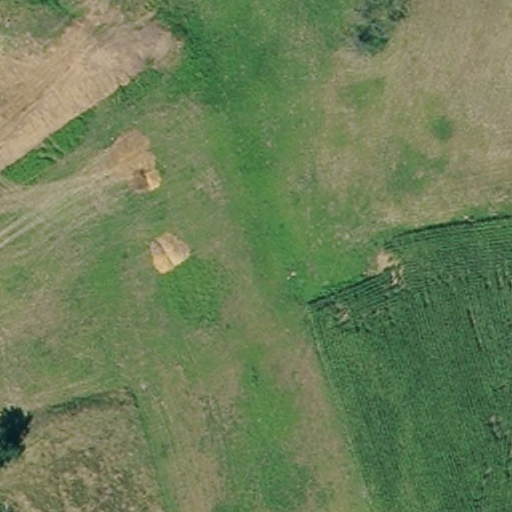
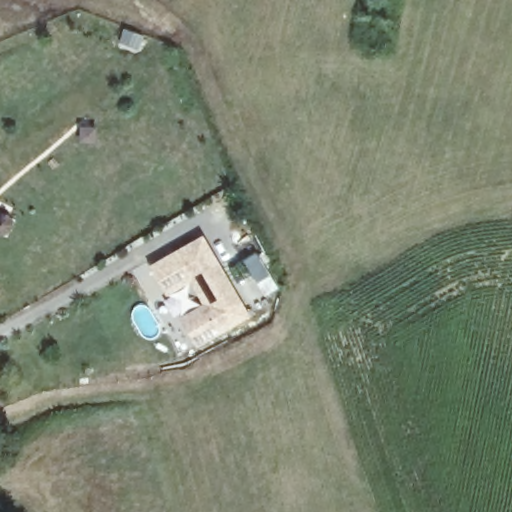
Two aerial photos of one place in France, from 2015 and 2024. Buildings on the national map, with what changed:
new [(240,322),(202,344),(187,318),(212,304),(197,277),(172,291),(157,266),(195,244),(207,237),(221,261),(239,291),(252,315),(240,322)]

